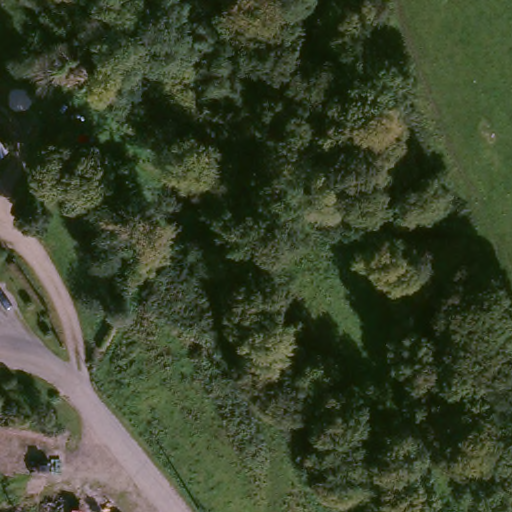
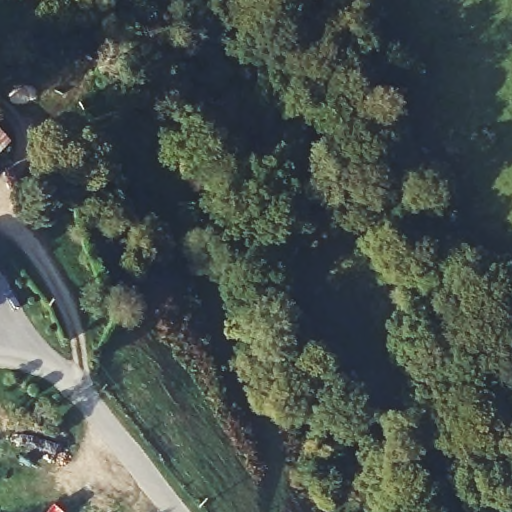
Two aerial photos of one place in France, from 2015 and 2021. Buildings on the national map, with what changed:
unchanged [(0,151),(0,139),(6,145),(0,151)]

